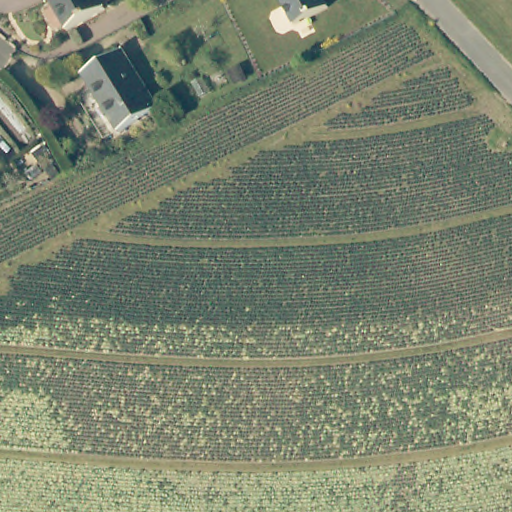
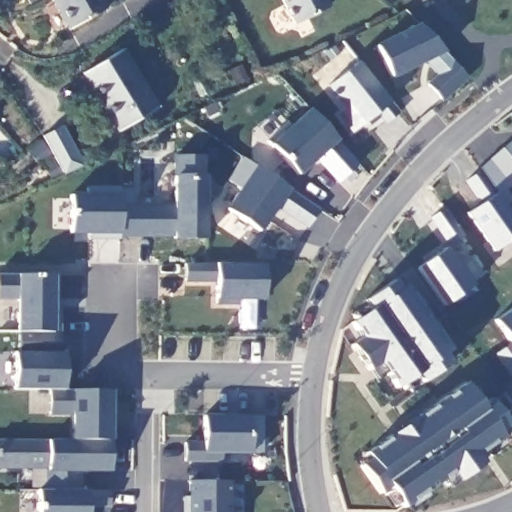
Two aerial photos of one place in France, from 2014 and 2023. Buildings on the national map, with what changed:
unchanged [(52,0),(101,0),(105,7),(68,29),(52,0)]
unchanged [(280,0),(325,0),(329,8),(293,27),(280,0)]
new [(444,101),(426,84),(436,75),(428,61),(390,79),(374,45),(418,24),(445,52),(468,78),(444,101)]
unchanged [(118,129),(84,74),(122,49),(155,104),(118,129)]
new [(385,124),(379,114),(350,132),(338,116),(347,108),(327,86),(358,63),(390,101),(399,113),(385,124)]
unchanged [(229,70),(239,66),(246,78),(235,83),(229,70)]
unchanged [(194,83),(203,76),(210,89),(200,95),(194,83)]
new [(337,181),(316,158),(298,175),(268,143),(305,109),(335,139),(357,164),(337,181)]
new [(42,136),(63,125),(84,165),(64,174),(42,136)]
new [(505,192),(512,200),(505,208),(512,218),(512,237),(493,251),(466,214),(483,199),(465,182),(512,139),(512,189),(510,188),(505,192)]
new [(122,238),(119,234),(67,234),(68,193),(119,194),(122,204),(170,205),(169,174),(177,174),(173,155),(204,156),(204,175),(205,239),(122,238)]
new [(307,228),(274,205),(258,230),(221,208),(235,185),(225,179),(242,159),(254,166),(290,189),(320,210),(307,228)]
new [(450,246),(428,219),(445,208),(464,234),(450,246)]
new [(473,284),(444,307),(418,268),(446,247),(473,284)]
new [(264,299),(216,299),(216,286),(185,283),(184,263),(216,264),(262,264),(264,299)]
new [(449,362),(422,382),(407,391),(396,389),(386,376),(376,379),(370,371),(349,345),(360,338),(350,321),(369,307),(363,299),(394,279),(401,288),(405,286),(449,349),(449,362)]
new [(512,313),(512,340),(499,323),(512,313)]
new [(63,353),(64,389),(71,389),(110,389),(111,474),(86,473),(87,489),(110,489),(110,507),(85,509),(86,512),(35,512),(35,489),(49,490),(48,472),(0,470),(0,439),(49,439),(71,440),(71,417),(48,416),(50,389),(11,389),(10,351),(19,351),(17,332),(59,333),(63,353)]
new [(512,344),(512,375),(498,355),(512,344)]
new [(480,407),(490,399),(508,426),(509,431),(503,438),(478,457),(483,463),(457,482),(448,488),(444,479),(402,508),(388,489),(380,494),(359,464),(367,457),(366,453),(465,383),(480,407)]
new [(260,453),(250,454),(221,454),(221,462),(184,462),(184,442),(202,444),(204,414),(250,416),(262,416),(260,453)]
new [(231,512),(189,512),(189,481),(232,482),(231,512)]

